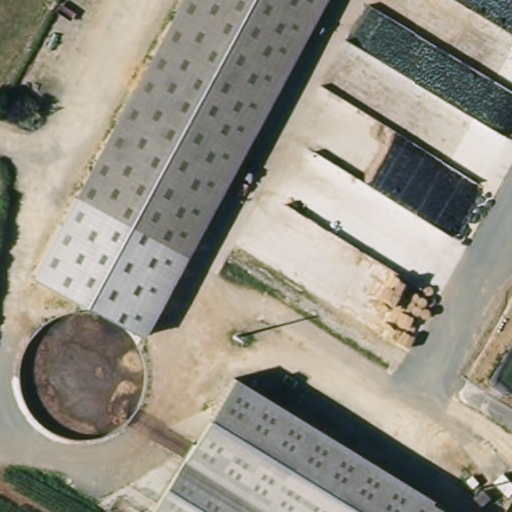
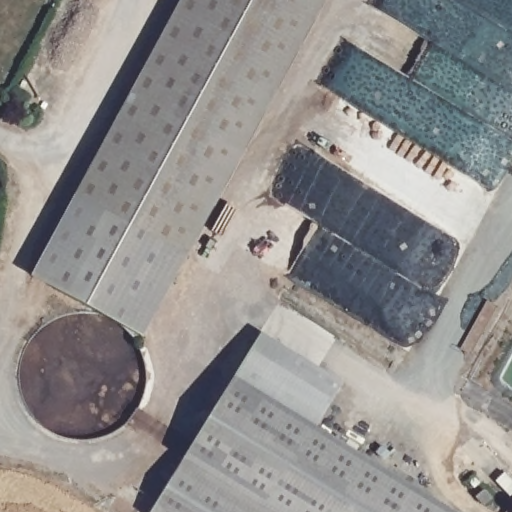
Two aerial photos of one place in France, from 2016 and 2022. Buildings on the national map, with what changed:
unchanged [(35,277),(183,0),(327,0),(142,336),(35,277)]
new [(262,332),(344,382),(316,427),(235,377),(262,332)]
unchanged [(185,459),(235,377),(456,512),(153,512),(185,459)]

